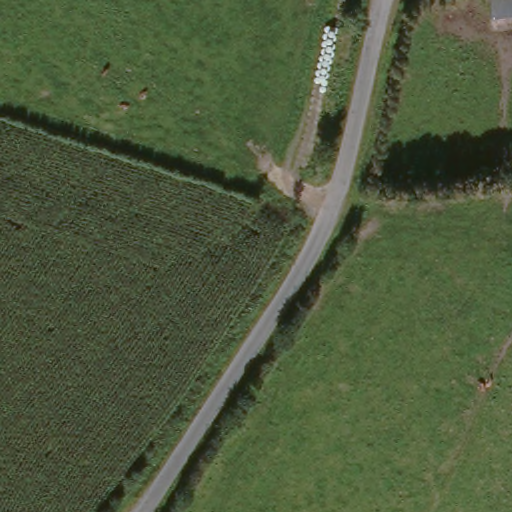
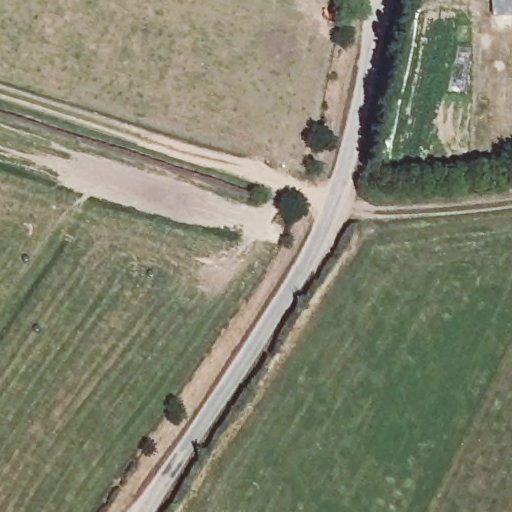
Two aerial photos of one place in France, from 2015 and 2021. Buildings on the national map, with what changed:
unchanged [(512,0),(512,17),(494,16),(494,0),(512,0)]

